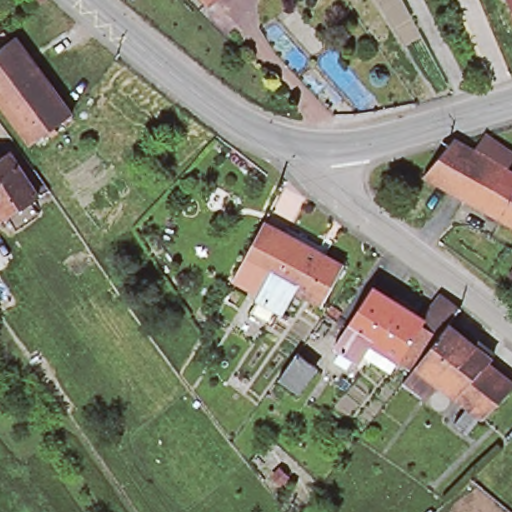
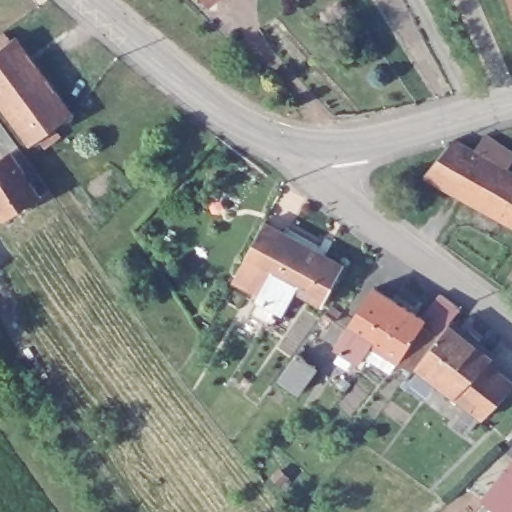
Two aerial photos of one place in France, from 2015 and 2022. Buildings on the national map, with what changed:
unchanged [(40,3),(38,0),(44,0),(40,3)]
unchanged [(208,5),(204,0),(214,0),(208,5)]
unchanged [(509,0),(512,0),(512,6),(509,0)]
unchanged [(32,144),(0,100),(0,48),(15,37),(73,115),(32,144)]
unchanged [(462,144),(474,150),(484,134),(512,153),(512,157),(509,164),(512,165),(512,225),(424,176),(446,147),(453,139),(462,144)]
unchanged [(0,213),(0,161),(12,153),(39,195),(26,204),(3,219),(0,213)]
unchanged [(344,266),(324,305),(296,290),(284,313),(259,300),(261,295),(233,280),(264,222),(344,266)]
unchanged [(509,277),(512,273),(512,279),(509,277)]
unchanged [(423,317),(427,319),(398,362),(386,354),(379,364),(365,356),(360,363),(334,347),(374,287),(423,317)]
unchanged [(427,319),(423,317),(439,297),(442,295),(461,309),(449,323),(416,366),(412,371),(398,362),(427,319)]
unchanged [(494,359),(489,365),(461,401),(438,383),(416,366),(449,323),(494,359)]
unchanged [(317,367),(298,393),(279,379),(298,353),(317,367)]
unchanged [(454,425),(469,407),(461,401),(489,365),(512,382),(512,389),(484,419),(482,422),(478,419),(466,434),(454,425)]
demolished [(231,404),(223,413),(213,404),(219,395),(231,404)]
new [(497,512),(479,498),(512,458),(512,512),(497,512)]
unchanged [(288,476),(281,484),(273,477),(281,470),(288,476)]

